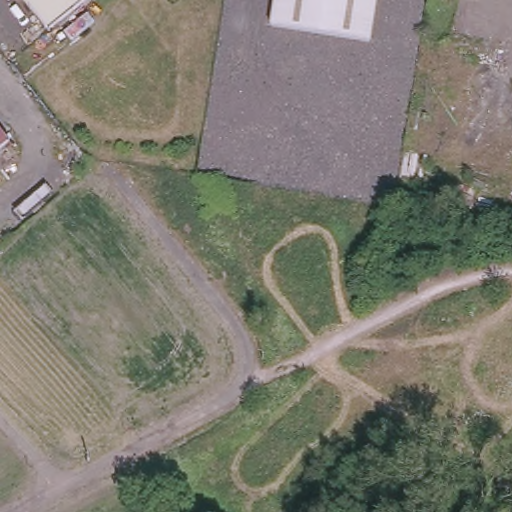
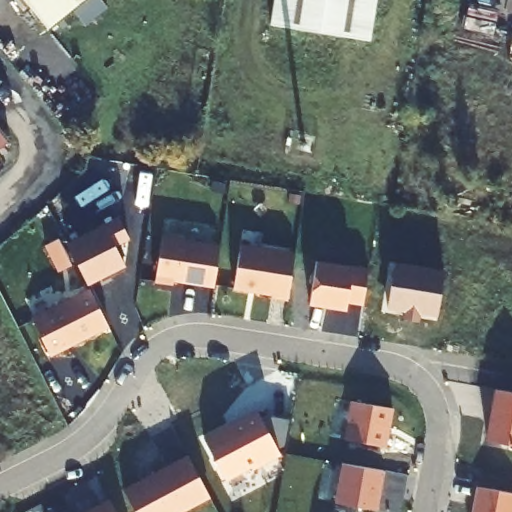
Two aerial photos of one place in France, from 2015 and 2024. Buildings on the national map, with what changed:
unchanged [(27,0),(91,0),(52,31),(27,0)]
unchanged [(272,22),(276,0),(378,0),(372,38),(272,22)]
unchanged [(0,147),(0,123),(12,137),(0,147)]
demolished [(80,244),(63,212),(95,195),(112,227),(80,244)]
new [(130,240),(115,246),(125,266),(88,286),(65,245),(117,218),(130,240)]
demolished [(112,227),(130,260),(97,277),(80,244),(112,227)]
new [(212,287),(174,281),(172,286),(155,282),(162,235),(221,246),(212,287)]
new [(288,298),(233,291),(241,244),(295,252),(288,298)]
new [(362,306),(347,302),(345,311),(308,304),(316,260),(352,266),(368,268),(362,306)]
new [(437,321),(387,313),(394,262),(445,272),(437,321)]
new [(110,327),(52,357),(32,318),(90,288),(110,327)]
demolished [(0,351),(0,341),(27,327),(45,358),(13,375),(0,351)]
demolished [(156,345),(188,327),(205,358),(172,376),(156,345)]
demolished [(172,376),(140,392),(124,362),(156,345),(172,376)]
demolished [(45,358),(62,391),(30,407),(13,375),(45,358)]
new [(485,440),(495,390),(512,392),(512,445),(485,440)]
new [(387,449),(343,440),(350,400),(395,408),(387,449)]
new [(260,416),(290,420),(283,450),(278,451),(282,455),(254,471),(252,468),(228,482),(204,438),(257,410),(260,416)]
new [(210,497),(183,512),(135,512),(123,491),(187,456),(210,497)]
new [(380,512),(333,505),(340,463),(385,472),(380,512)]
new [(476,487),(512,493),(512,512),(472,512),(476,487)]
new [(117,512),(86,512),(110,499),(117,512)]
demolished [(103,506),(107,512),(91,512),(103,506)]

